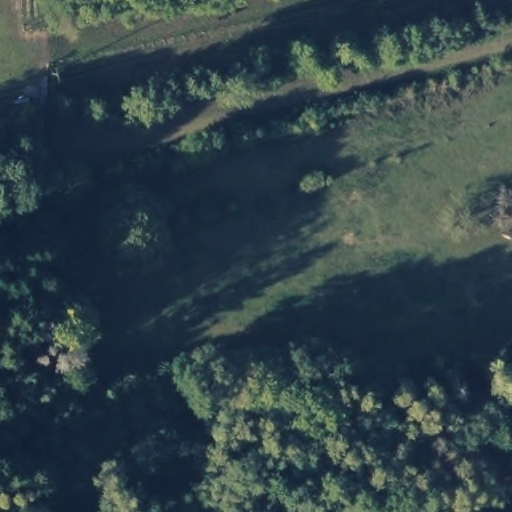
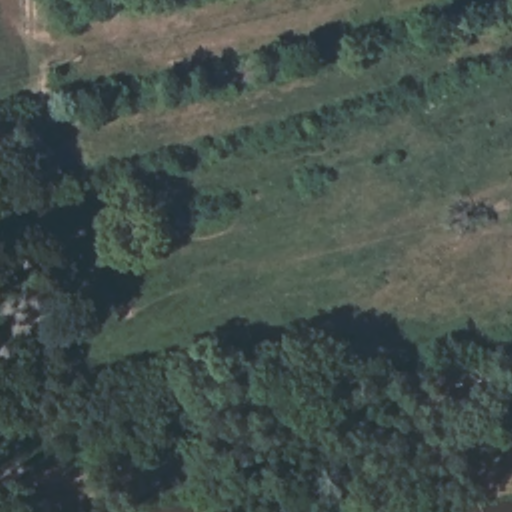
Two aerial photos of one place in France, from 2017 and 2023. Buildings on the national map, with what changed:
[]

